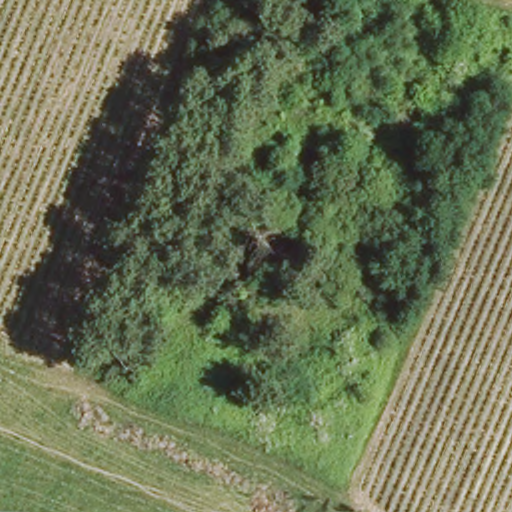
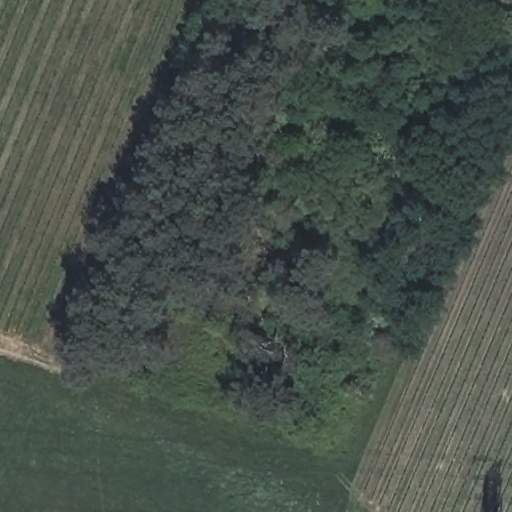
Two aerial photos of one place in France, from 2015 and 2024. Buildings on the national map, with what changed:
[]

